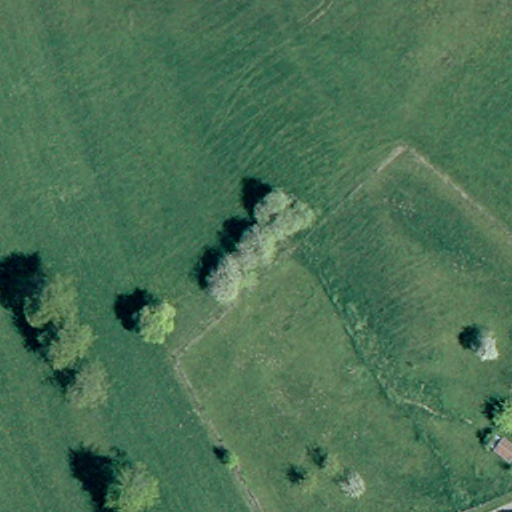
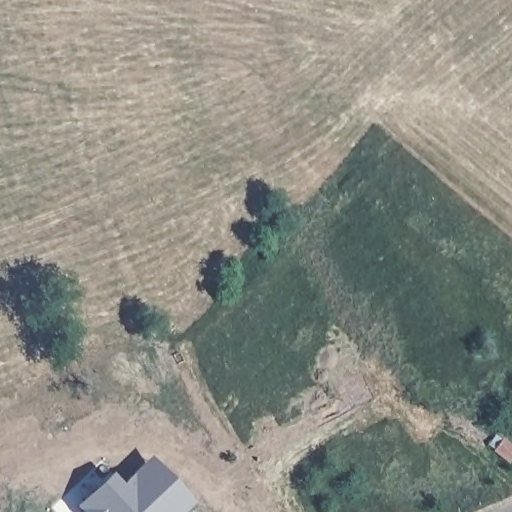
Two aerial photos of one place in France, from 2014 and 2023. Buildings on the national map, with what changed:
new [(81,509),(108,481),(120,492),(143,467),(159,483),(163,480),(186,504),(178,512),(84,512),(81,509)]

